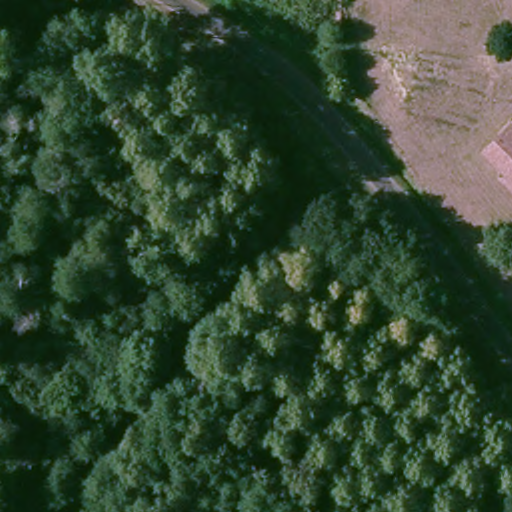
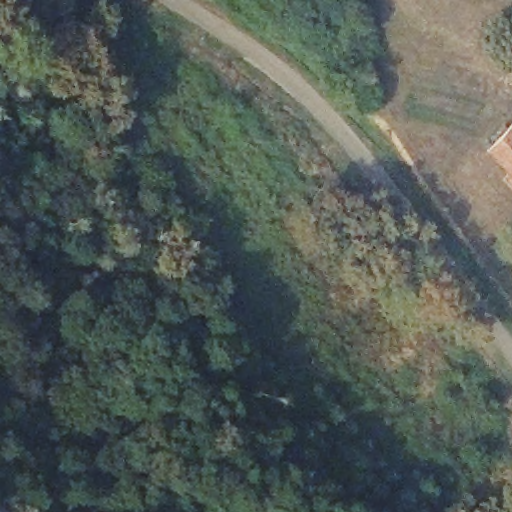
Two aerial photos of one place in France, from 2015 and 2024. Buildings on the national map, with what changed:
unchanged [(504,174),(511,167),(490,142),(512,124),(512,184),(504,174)]

